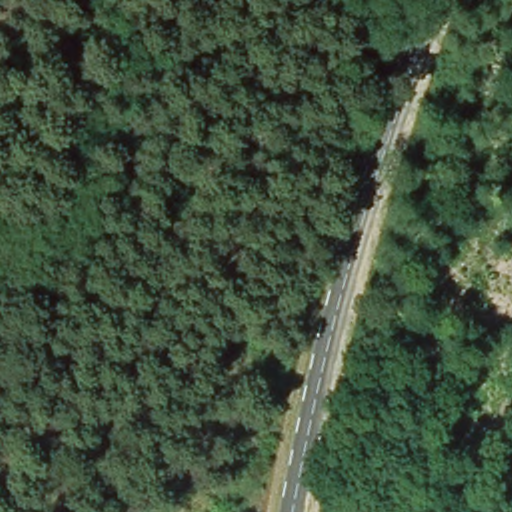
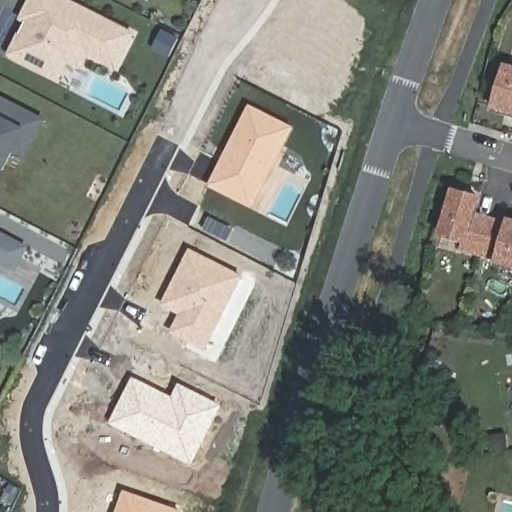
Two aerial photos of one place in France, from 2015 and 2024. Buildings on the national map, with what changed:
new [(59,78),(38,67),(10,53),(19,35),(26,20),(21,17),(30,0),(71,0),(134,32),(116,67),(89,53),(81,67),(46,49),(68,60),(59,78)]
new [(508,66),(512,67),(512,113),(495,108),(508,66)]
new [(0,166),(0,95),(43,118),(34,134),(24,153),(13,147),(23,128),(3,167),(0,166)]
new [(250,105),(295,127),(253,209),(209,187),(250,105)]
new [(479,198),(474,214),(508,224),(509,220),(512,221),(512,267),(497,262),(498,258),(463,247),(465,241),(441,233),(454,190),(479,198)]
new [(16,267),(0,258),(0,230),(28,245),(16,267)]
new [(190,249),(244,276),(206,351),(170,333),(180,315),(161,305),(190,249)]
new [(172,396),(179,383),(222,406),(192,466),(110,424),(133,377),(172,396)]
new [(182,512),(116,512),(124,491),(183,511),(182,512)]

